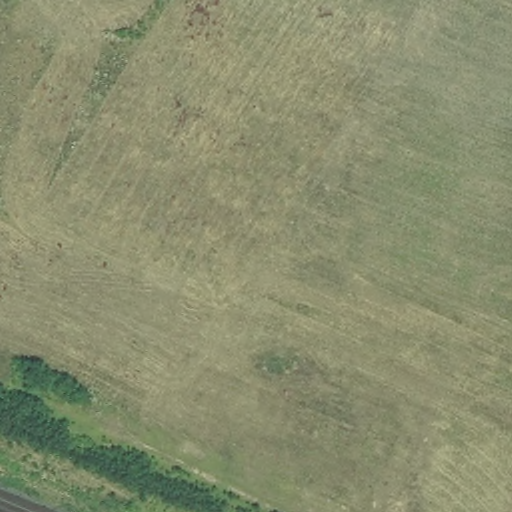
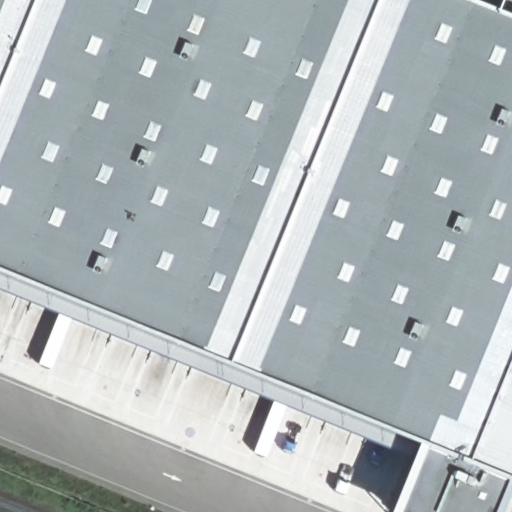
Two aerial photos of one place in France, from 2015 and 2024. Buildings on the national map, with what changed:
new [(0,0),(469,0),(512,18),(512,462),(0,254),(0,0)]

